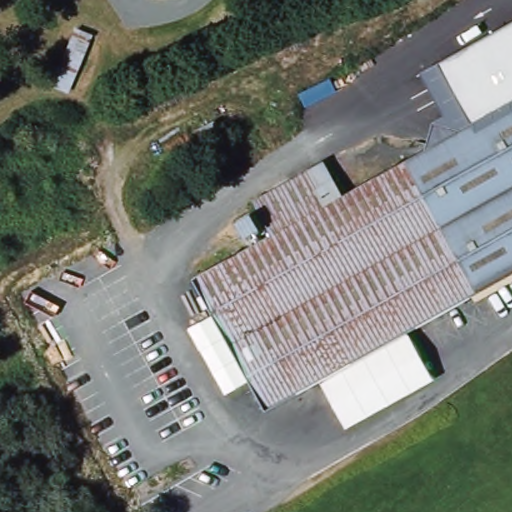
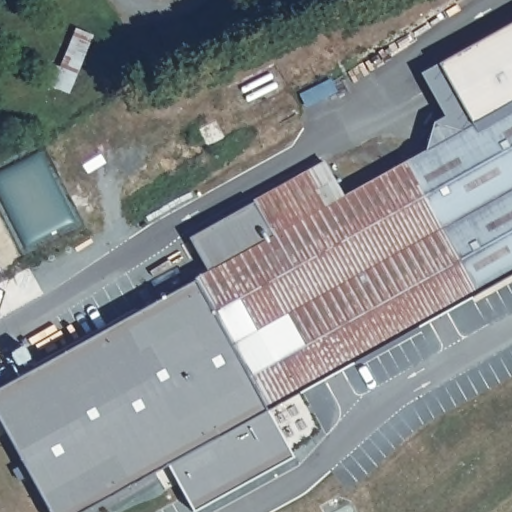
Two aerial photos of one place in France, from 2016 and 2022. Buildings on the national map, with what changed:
unchanged [(436,123),(445,116),(421,70),(512,22),(512,105),(427,148),(436,123)]
unchanged [(94,35),(69,93),(51,85),(75,28),(94,35)]
new [(330,79),(336,92),(305,107),(299,94),(330,79)]
unchanged [(330,154),(346,189),(512,105),(512,276),(266,403),(195,265),(275,224),(258,191),(311,164),(330,154)]
unchanged [(179,120),(185,134),(166,144),(158,132),(179,120)]
new [(252,202),(261,197),(275,224),(203,261),(190,237),(252,202)]
new [(192,511),(169,463),(80,512),(50,512),(0,422),(0,387),(201,277),(265,404),(291,456),(192,511)]

